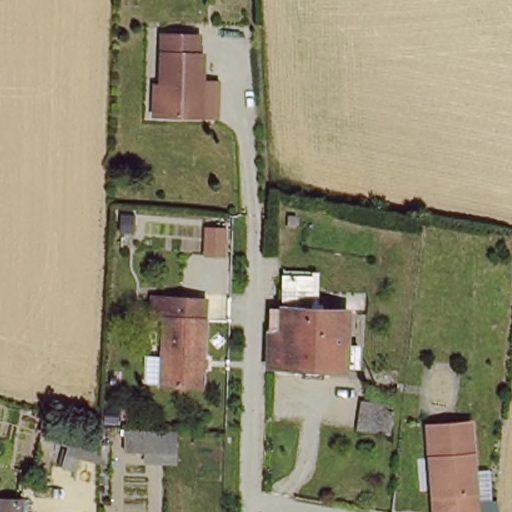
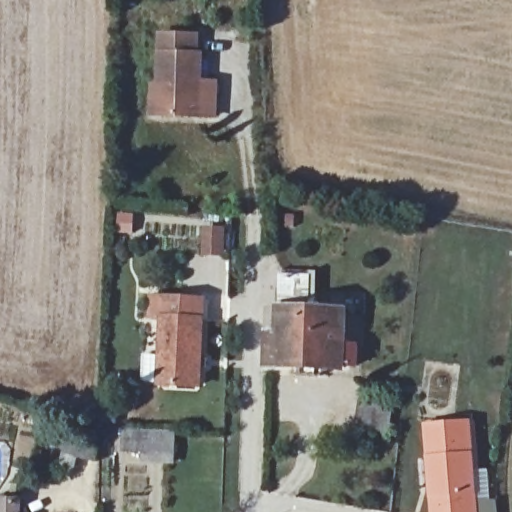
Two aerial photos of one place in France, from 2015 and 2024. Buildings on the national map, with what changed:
unchanged [(153,94),(164,94),(166,31),(193,32),(193,50),(203,51),(201,116),(163,115),(153,115),(153,94)]
unchanged [(282,370),(283,333),(270,331),(270,312),(283,312),(285,280),(316,279),(316,314),(349,316),(349,351),(360,352),(360,372),(349,370),(348,374),(282,370)]
unchanged [(203,383),(163,382),(165,312),(157,313),(158,285),(208,286),(206,313),(203,383)]
unchanged [(360,438),(361,404),(398,406),(398,439),(360,438)]
unchanged [(450,495),(447,457),(442,457),(440,424),(482,421),(488,512),(446,512),(445,495),(450,495)]
unchanged [(180,434),(178,464),(127,463),(127,431),(180,434)]

